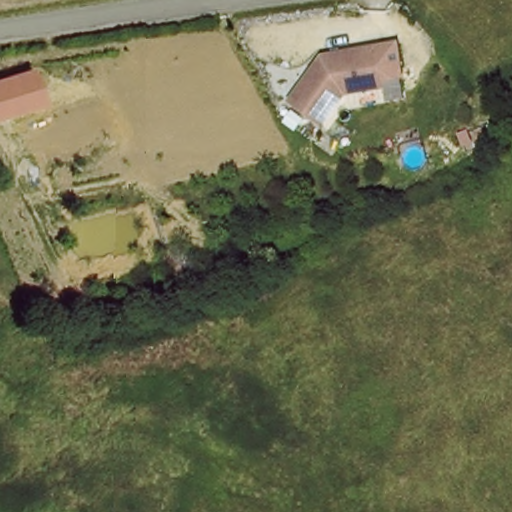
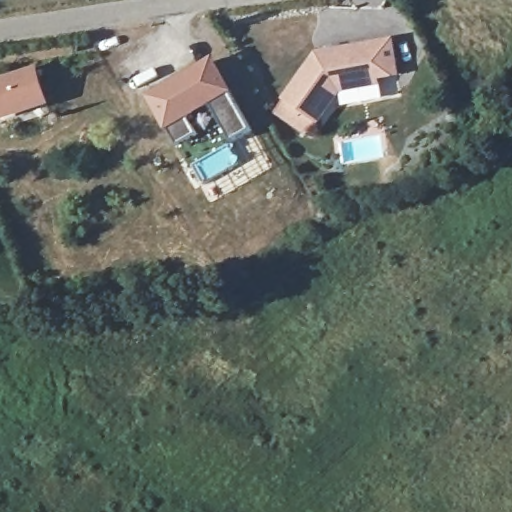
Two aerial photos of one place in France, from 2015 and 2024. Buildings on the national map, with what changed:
unchanged [(332,92),(309,125),(276,101),(299,69),(309,56),(384,43),(386,55),(390,77),(372,80),(373,86),(332,92)]
new [(234,144),(213,106),(188,120),(199,136),(179,147),(171,130),(167,132),(147,97),(215,58),(235,93),(229,96),(252,132),(234,144)]
unchanged [(39,68),(51,107),(0,120),(0,80),(39,68)]

